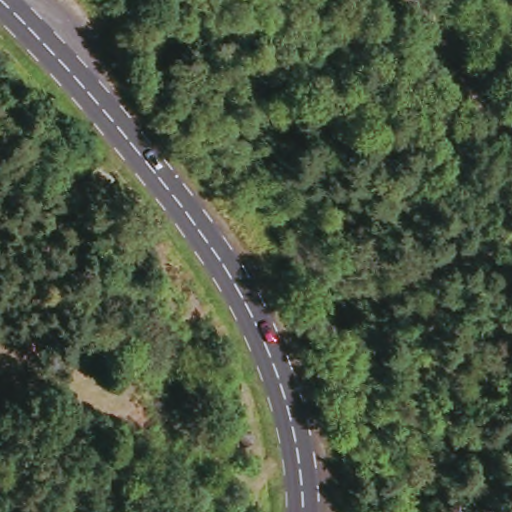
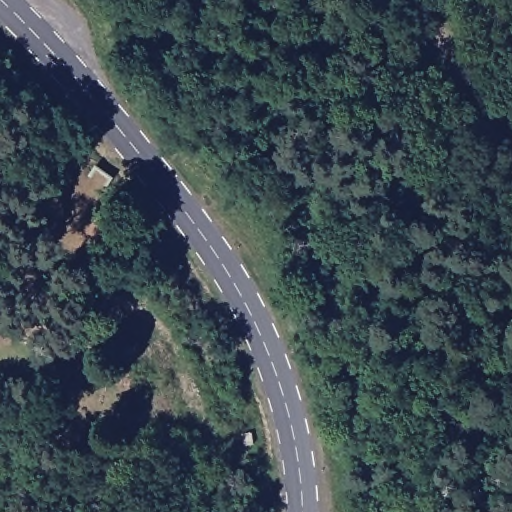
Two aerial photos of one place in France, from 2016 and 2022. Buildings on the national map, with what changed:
unchanged [(254,444),(244,447),(242,433),(251,433),(254,444)]

